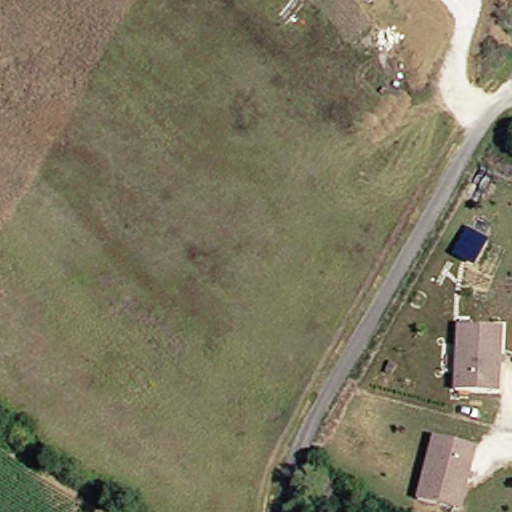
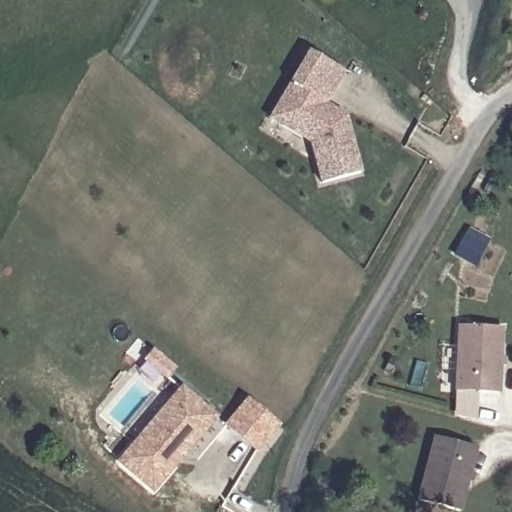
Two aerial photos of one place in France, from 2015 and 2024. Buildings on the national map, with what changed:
new [(348,69),(328,102),(338,107),(349,114),(365,170),(327,180),(316,140),(285,122),(275,116),(291,87),(313,49),(348,69)]
new [(471,228),(492,239),(479,262),(458,252),(471,228)]
unchanged [(461,325),(504,330),(497,395),(454,390),(461,325)]
new [(156,487),(123,460),(183,387),(216,415),(195,440),(177,462),(156,487)]
new [(246,397),(280,425),(257,452),(223,425),(246,397)]
unchanged [(473,451),(458,512),(450,512),(416,503),(432,440),(473,451)]
unchanged [(318,482),(336,486),(333,505),(313,501),(316,487),(317,482),(318,482)]

